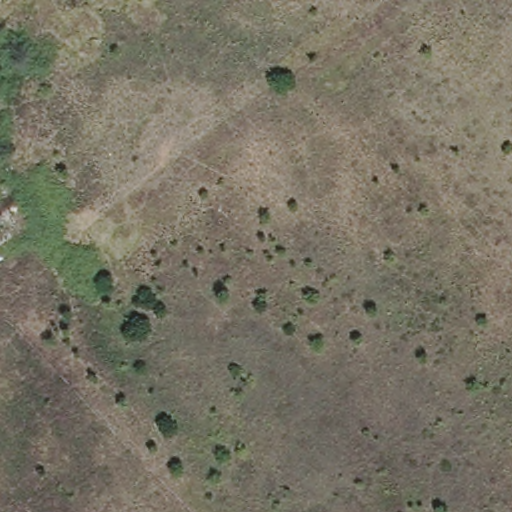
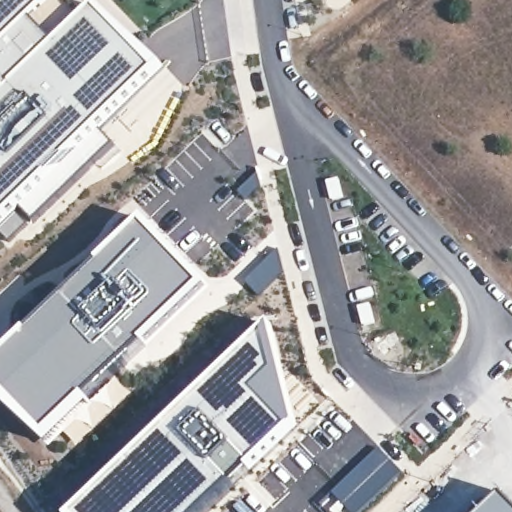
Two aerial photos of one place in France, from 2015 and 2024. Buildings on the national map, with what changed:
new [(102,6),(167,69),(101,130),(116,146),(37,221),(25,206),(0,231),(0,0),(71,0),(90,19),(102,6)]
new [(145,222),(211,289),(147,350),(145,348),(92,401),(96,405),(51,450),(0,402),(0,360),(145,222)]
new [(275,248),(283,273),(258,296),(242,280),(275,248)]
new [(155,437),(260,335),(272,326),(286,374),(299,427),(251,472),(215,502),(206,512),(76,512),(155,437)]
new [(377,444),(402,472),(358,512),(349,512),(330,492),(377,444)]
new [(505,496),(512,503),(512,512),(488,512),(505,496)]

